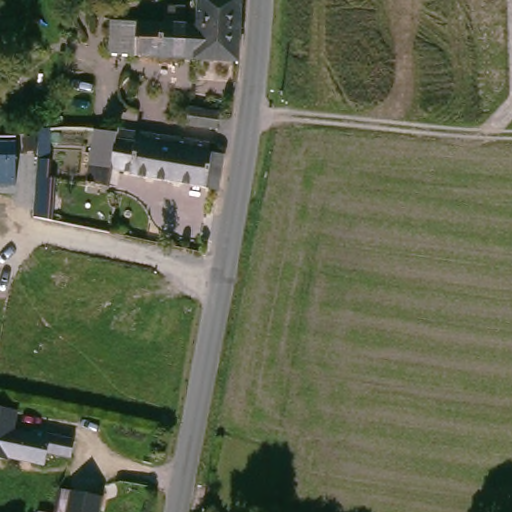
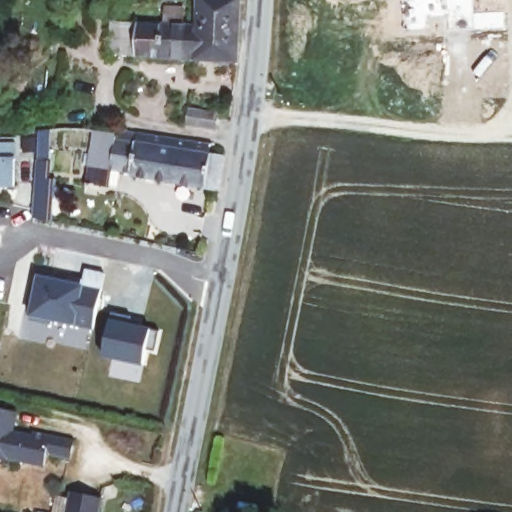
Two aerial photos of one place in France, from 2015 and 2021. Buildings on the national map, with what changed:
unchanged [(203,55),(144,51),(118,49),(120,16),(145,18),(174,20),(175,4),(193,4),(192,21),(206,22),(207,0),(250,0),(247,58),(203,55)]
unchanged [(218,114),(215,129),(185,124),(188,109),(218,114)]
unchanged [(99,136),(122,139),(123,135),(139,137),(215,148),(213,159),(229,161),(224,196),(133,181),(134,179),(114,175),(111,193),(105,192),(104,195),(89,192),(90,189),(93,171),(99,136)]
unchanged [(0,137),(15,137),(15,157),(15,187),(0,187),(0,137)]
unchanged [(34,178),(35,160),(49,161),(49,179),(54,179),(51,222),(35,219),(32,218),(34,193),(34,178)]
new [(93,330),(77,327),(29,318),(38,274),(84,284),(100,288),(93,330)]
new [(156,350),(147,345),(144,365),(104,357),(111,318),(113,311),(131,314),(131,319),(140,322),(140,325),(151,327),(159,331),(156,350)]
unchanged [(49,462),(12,454),(11,457),(0,455),(0,403),(21,407),(18,427),(36,431),(38,427),(79,435),(75,455),(51,450),(49,462)]
unchanged [(107,493),(103,512),(69,512),(74,487),(107,493)]

